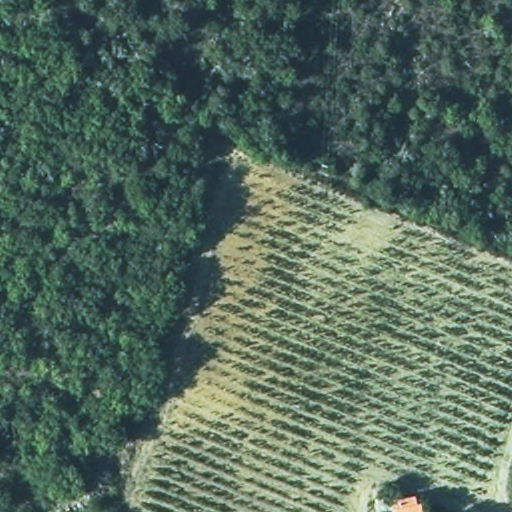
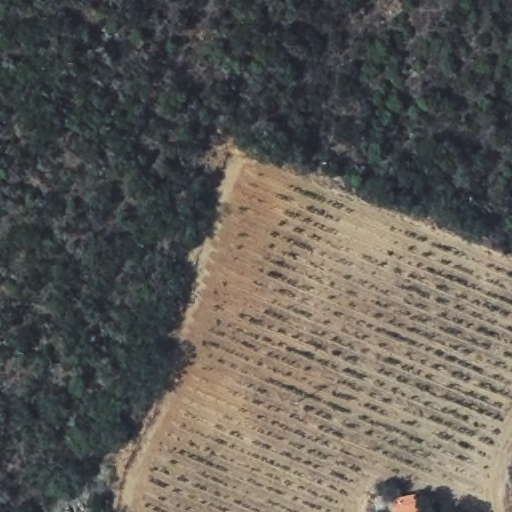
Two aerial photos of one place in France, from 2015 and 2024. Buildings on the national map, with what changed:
unchanged [(376,503),(378,493),(384,483),(392,482),(402,484),(412,493),(415,503),(414,512),(381,512),(380,511),(376,503)]

